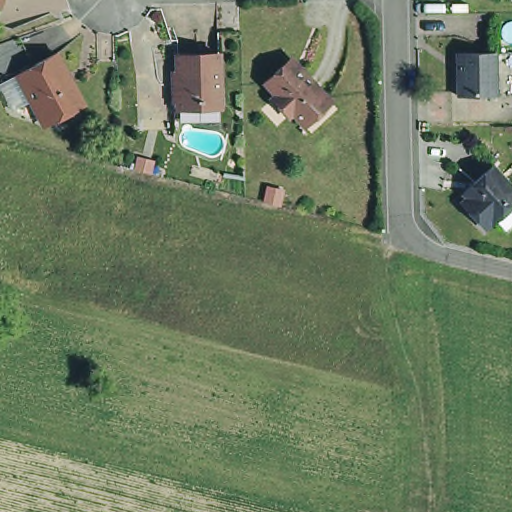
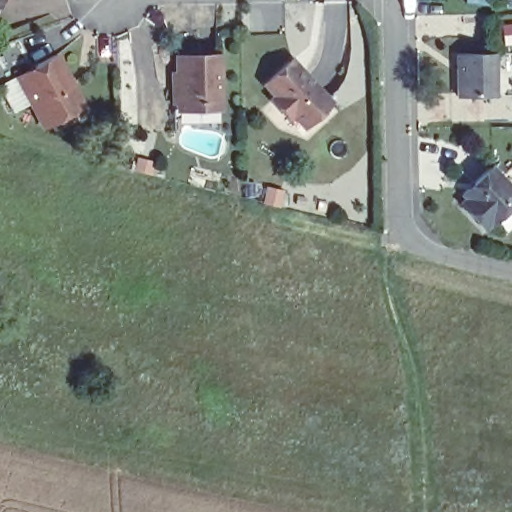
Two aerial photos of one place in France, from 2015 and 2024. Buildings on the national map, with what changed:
unchanged [(5,2),(0,19),(0,0),(6,0),(5,2)]
unchanged [(209,50),(210,98),(168,99),(167,51),(209,50)]
unchanged [(489,54),(490,96),(453,97),(452,54),(489,54)]
unchanged [(80,107),(45,130),(17,75),(58,55),(80,107)]
unchanged [(311,134),(301,122),(292,113),(289,117),(272,99),(276,96),(265,84),(289,62),(291,60),(304,74),(327,99),(337,110),(311,134)]
unchanged [(480,189),(480,182),(496,167),(512,185),(512,209),(497,224),(495,222),(489,228),(475,212),(480,207),(469,194),(473,189),(480,189)]

